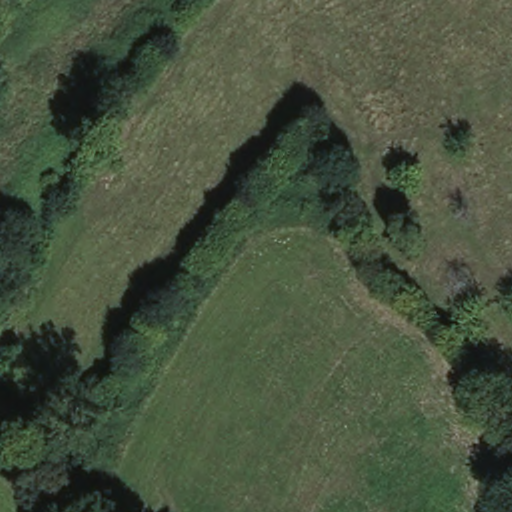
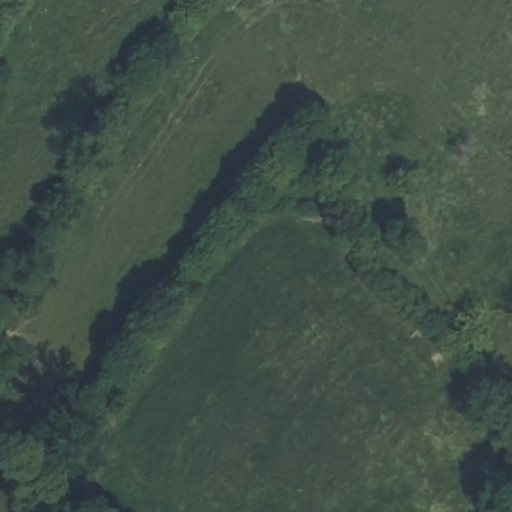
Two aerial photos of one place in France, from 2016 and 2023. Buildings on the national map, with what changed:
[]

